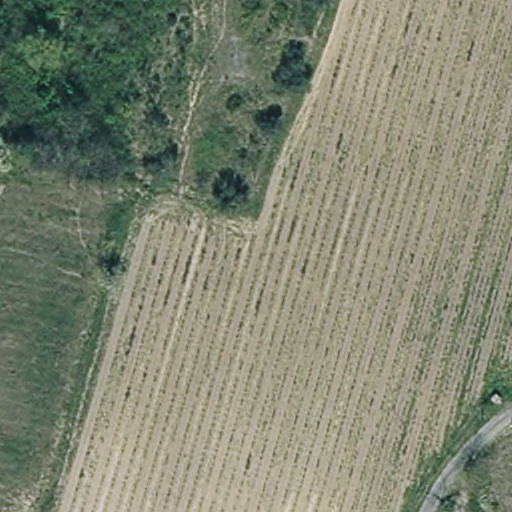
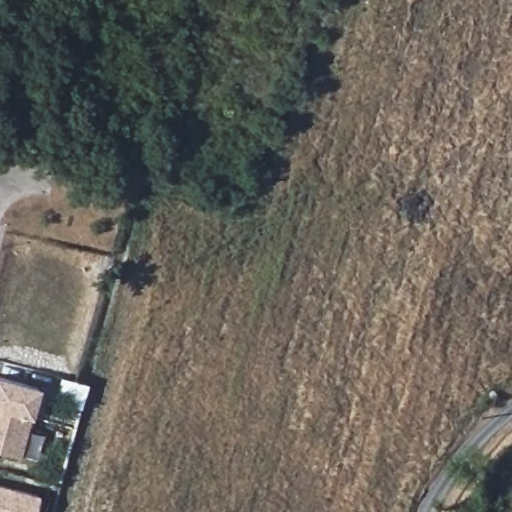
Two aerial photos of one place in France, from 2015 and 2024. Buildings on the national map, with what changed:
new [(0,450),(0,376),(36,385),(28,415),(18,455),(0,450)]
new [(34,512),(0,512),(0,484),(38,494),(34,512)]

